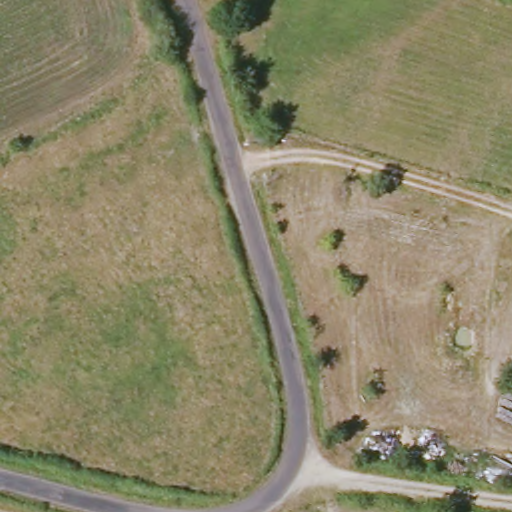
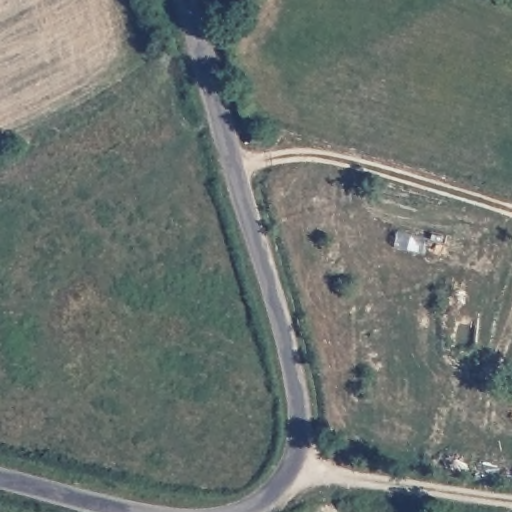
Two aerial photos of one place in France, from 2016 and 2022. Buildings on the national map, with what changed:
unchanged [(257,124),(275,129),(272,147),(253,143),(257,124)]

